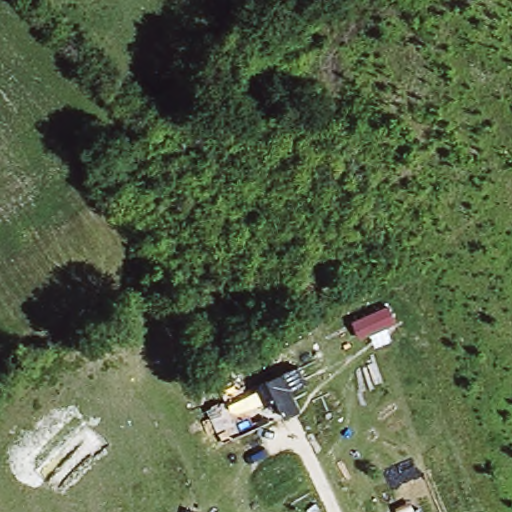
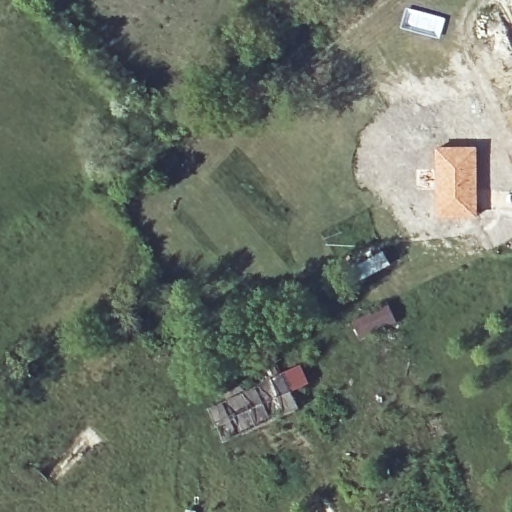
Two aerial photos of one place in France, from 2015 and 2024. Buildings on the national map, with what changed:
new [(477,145),(478,217),(435,219),(434,146),(477,145)]
new [(382,249),(391,264),(357,284),(348,268),(382,249)]

